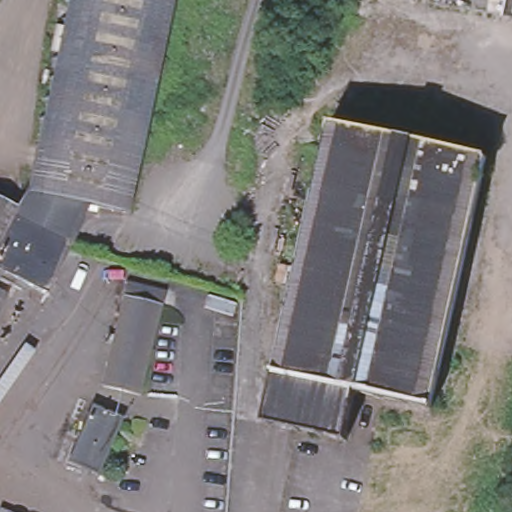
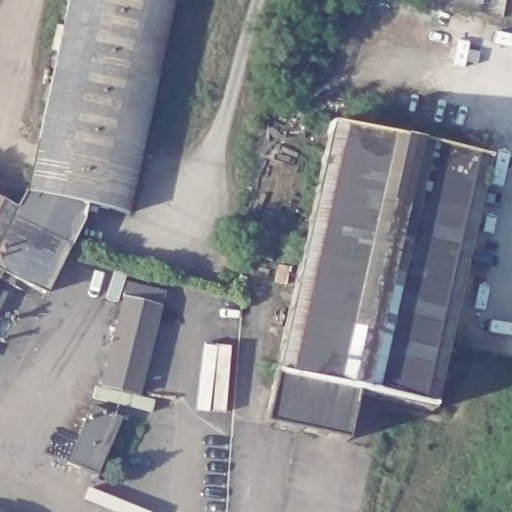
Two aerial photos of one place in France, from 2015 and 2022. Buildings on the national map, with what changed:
unchanged [(28,191),(34,166),(32,166),(43,115),(45,116),(51,87),(70,0),(173,0),(143,137),(140,136),(129,186),(128,186),(123,212),(84,203),(77,223),(67,244),(15,219),(19,210),(20,207),(28,191)]
unchanged [(283,337),(290,305),(301,259),(330,127),(486,161),(428,415),(420,413),(429,370),(283,337)]
unchanged [(19,210),(15,219),(0,247),(0,201),(19,210)]
unchanged [(67,244),(43,293),(0,272),(0,247),(15,219),(67,244)]
unchanged [(280,270),(288,271),(285,287),(277,285),(280,270)]
unchanged [(104,386),(125,298),(124,297),(127,283),(166,293),(162,307),(159,306),(138,394),(104,386)]
unchanged [(7,295),(0,310),(0,292),(7,295)]
unchanged [(420,413),(356,399),(274,381),(283,337),(429,370),(420,413)]
unchanged [(356,399),(344,446),(263,428),(274,381),(356,399)]
unchanged [(95,408),(126,421),(101,478),(70,467),(95,408)]
unchanged [(5,512),(0,512),(0,510),(5,512)]

